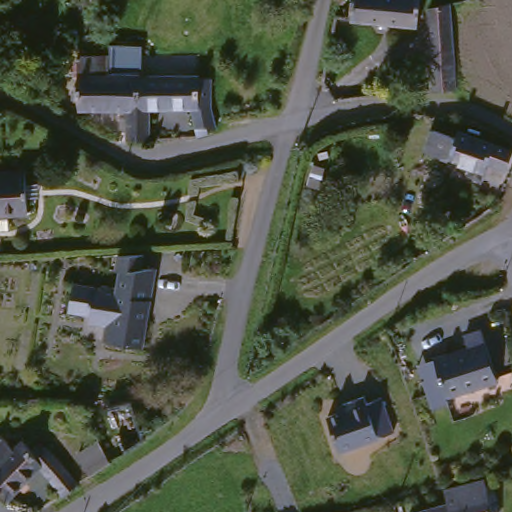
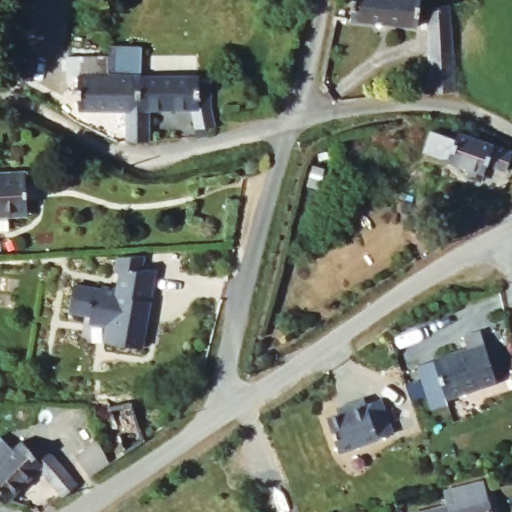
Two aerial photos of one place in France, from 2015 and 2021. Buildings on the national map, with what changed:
unchanged [(357,0),(424,0),(422,21),(355,14),(357,0)]
unchanged [(460,87),(435,89),(432,4),(453,0),(460,87)]
unchanged [(124,122),(124,115),(126,114),(131,114),(131,105),(83,105),(83,71),(72,71),(72,51),(84,51),(112,51),(111,69),(129,70),(144,71),(144,104),(145,104),(153,104),(153,136),(131,135),(131,124),(126,124),(124,122)]
unchanged [(164,112),(164,104),(153,104),(145,104),(144,104),(144,71),(166,71),(200,71),(204,71),(204,73),(216,73),(216,94),(204,94),(209,95),(211,96),(211,100),(216,100),(219,118),(219,122),(209,122),(211,130),(201,133),(197,104),(177,104),(177,112),(164,112)]
unchanged [(475,163),(429,146),(436,125),(460,133),(462,126),(512,144),(512,164),(511,165),(492,158),(489,168),(486,176),(472,171),(475,163)]
unchanged [(314,164),(324,167),(318,189),(308,186),(314,164)]
unchanged [(0,224),(0,169),(25,167),(26,179),(37,178),(38,192),(27,193),(28,209),(8,210),(9,223),(0,224)]
unchanged [(156,265),(140,352),(97,345),(101,326),(64,318),(69,284),(109,292),(116,257),(156,265)]
unchanged [(466,334),(483,329),(496,379),(449,392),(451,399),(434,403),(425,371),(421,356),(435,352),(468,343),(466,334)]
unchanged [(315,421),(327,417),(325,413),(331,411),(331,408),(352,401),(354,408),(369,403),(381,437),(327,455),(315,421)]
unchanged [(11,498),(7,502),(0,494),(0,436),(13,448),(21,440),(30,450),(38,443),(46,448),(77,484),(61,495),(39,468),(11,498)]
unchanged [(86,478),(72,457),(96,440),(108,463),(86,478)]
unchanged [(497,512),(413,512),(412,508),(449,498),(449,484),(487,476),(497,512)]

